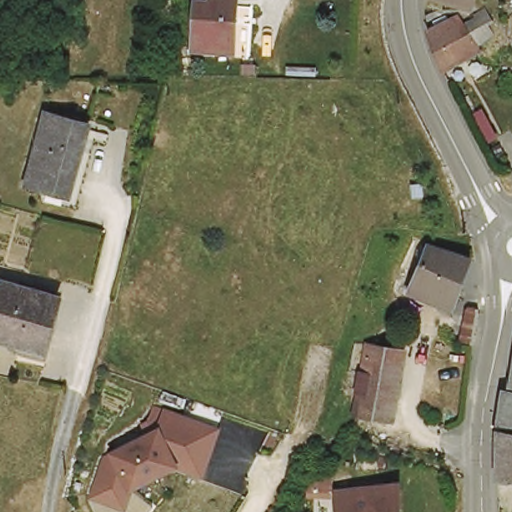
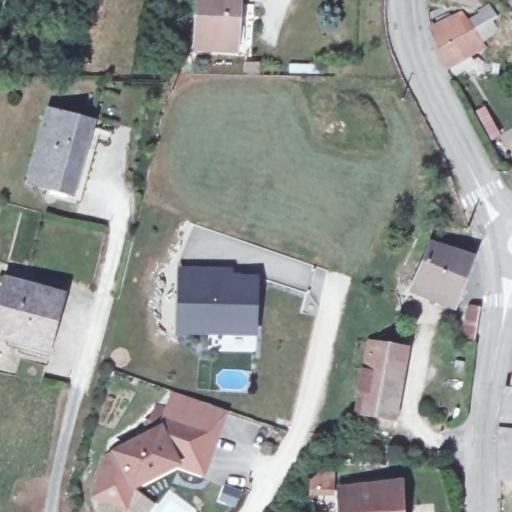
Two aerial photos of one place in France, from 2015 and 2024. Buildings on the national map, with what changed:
unchanged [(222,0),(246,0),(244,54),(201,50),(202,1),(221,0),(222,0)]
unchanged [(428,26),(453,14),(463,25),(479,16),(492,29),(479,37),(476,47),(447,63),(428,26)]
unchanged [(36,182),(50,115),(91,124),(78,193),(36,182)]
unchanged [(459,309),(416,296),(430,250),(474,261),(459,309)]
new [(178,273),(189,273),(226,272),(226,281),(250,280),(251,331),(178,332),(178,285),(178,273)]
unchanged [(0,341),(0,311),(5,286),(59,298),(47,352),(0,341)]
unchanged [(463,326),(469,296),(479,298),(473,328),(463,326)]
unchanged [(370,344),(404,354),(389,421),(356,413),(370,344)]
unchanged [(512,428),(508,427),(504,427),(512,384),(512,428)]
unchanged [(103,498),(115,457),(167,428),(173,409),(224,425),(211,470),(185,462),(141,486),(135,507),(103,498)]
unchanged [(512,428),(512,470),(505,469),(504,427),(508,427),(512,428)]
unchanged [(349,501),(351,501),(406,492),(407,512),(350,512),(349,501)]
unchanged [(321,502),(321,493),(341,493),(341,502),(321,502)]

